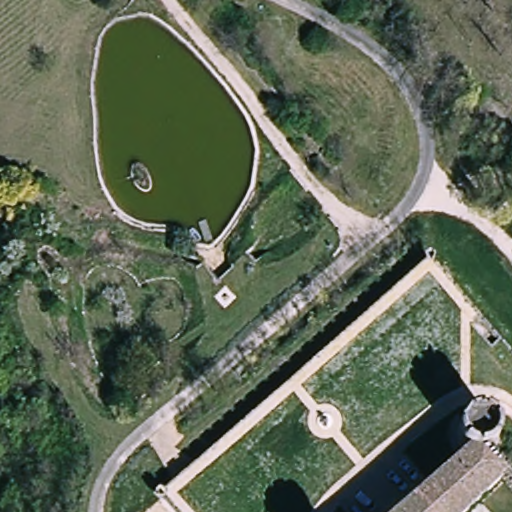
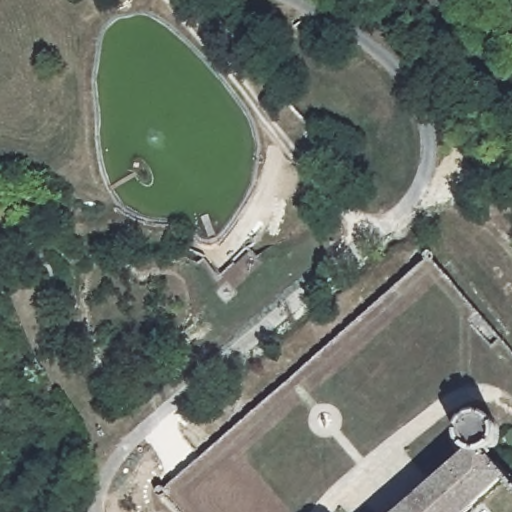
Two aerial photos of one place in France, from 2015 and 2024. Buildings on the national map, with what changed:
unchanged [(465,455),(456,449),(449,438),(451,425),(457,417),(464,412),(476,409),(486,415),(495,427),(497,438),(491,450),(512,477),(512,488),(488,512),(397,512),(465,455)]

